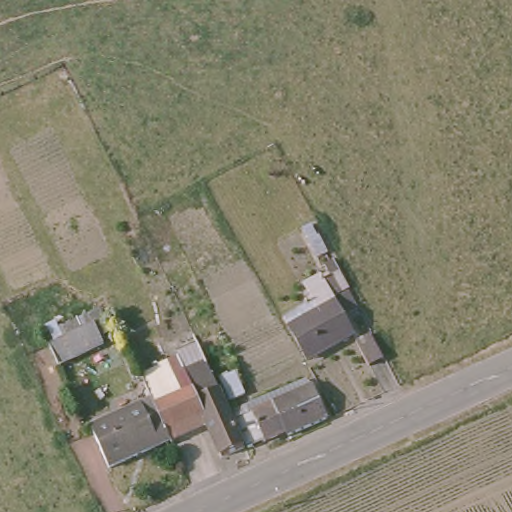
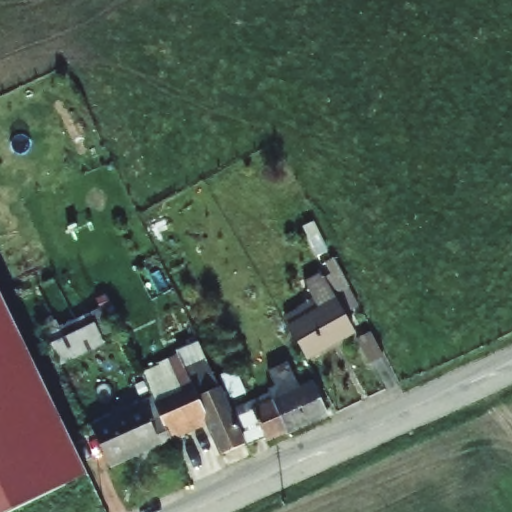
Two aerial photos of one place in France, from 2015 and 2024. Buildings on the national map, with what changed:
unchanged [(302,305),(301,302),(319,293),(310,276),(324,269),(332,286),(336,292),(339,298),(354,329),(310,353),(294,322),(289,311),(302,305)]
new [(10,512),(0,512),(0,292),(89,474),(10,512)]
unchanged [(106,339),(57,355),(50,339),(107,316),(119,313),(122,322),(112,327),(104,331),(106,339)]
demolished [(369,321),(372,328),(362,333),(359,326),(369,321)]
unchanged [(376,329),(390,356),(372,361),(362,338),(376,329)]
unchanged [(144,392),(154,387),(147,373),(166,365),(164,361),(183,352),(191,369),(195,379),(217,369),(227,388),(252,442),(229,451),(212,415),(176,431),(175,429),(165,434),(114,456),(95,416),(144,392)]
unchanged [(244,415),(257,408),(278,398),(314,380),(329,412),(296,426),(294,423),(290,425),(268,434),(254,440),(244,415)]

